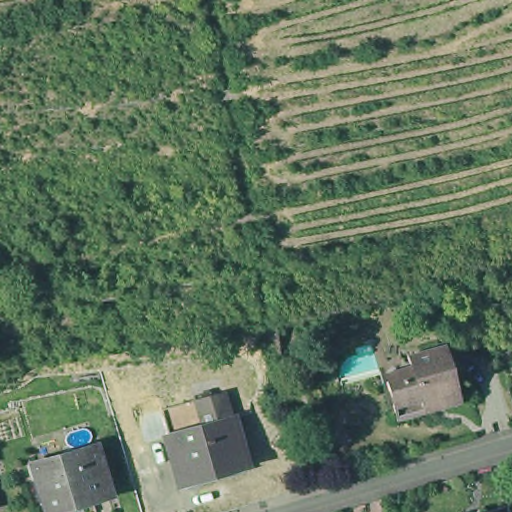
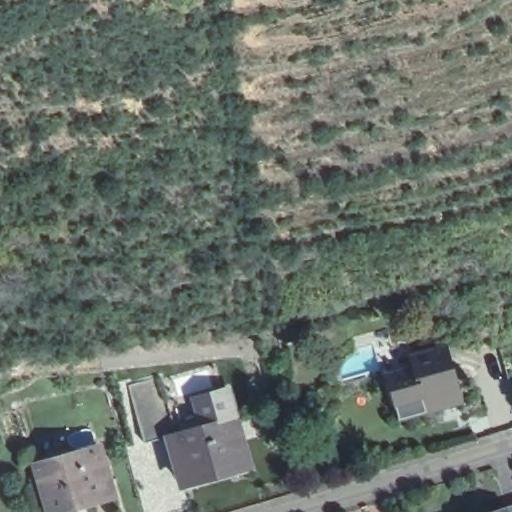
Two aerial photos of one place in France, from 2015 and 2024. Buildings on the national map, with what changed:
unchanged [(464,399),(400,416),(389,376),(415,369),(411,352),(448,342),(464,399)]
unchanged [(171,437),(173,437),(166,409),(198,400),(226,392),(233,419),(246,458),(248,465),(225,472),(184,484),(171,437)]
unchanged [(86,502),(55,512),(37,457),(42,456),(106,437),(119,480),(83,491),(84,497),(86,502)]
unchanged [(512,496),(512,512),(464,512),(464,511),(482,505),(505,498),(512,496)]

